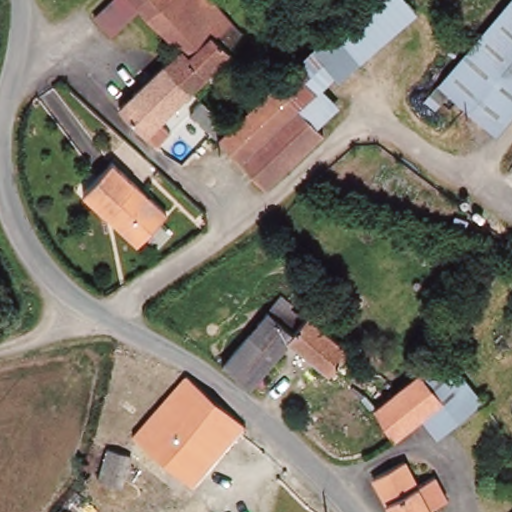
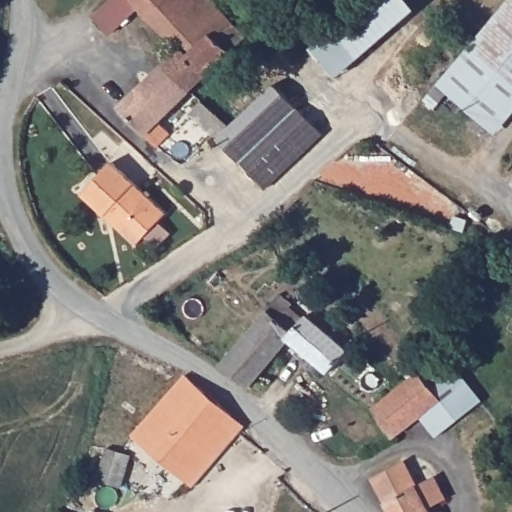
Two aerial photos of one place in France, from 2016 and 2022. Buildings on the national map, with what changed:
unchanged [(229,56),(141,137),(115,107),(177,50),(139,12),(112,34),(95,16),(110,0),(215,0),(248,37),(229,56)]
unchanged [(330,81),(307,53),(369,0),(407,0),(417,12),(330,81)]
unchanged [(509,0),(512,0),(512,111),(497,128),(438,81),(509,0)]
unchanged [(330,81),(322,87),(338,105),(317,130),(325,135),(265,192),(215,141),(307,53),(330,81)]
unchanged [(167,212),(139,243),(85,194),(115,162),(167,212)]
unchanged [(351,348),(332,374),(288,347),(247,394),(220,370),(266,317),(260,312),(276,293),(282,299),(292,308),(288,317),(309,318),(312,313),(351,348)]
unchanged [(429,415),(395,442),(372,408),(438,356),(475,402),(443,434),(429,415)]
unchanged [(197,490),(144,447),(134,437),(171,388),(180,377),(245,428),(234,444),(197,490)]
unchanged [(109,476),(102,483),(85,471),(106,441),(125,455),(109,476)]
unchanged [(435,512),(389,512),(373,481),(381,476),(408,461),(435,512)]
unchanged [(55,510),(60,512),(54,512),(55,510)]

